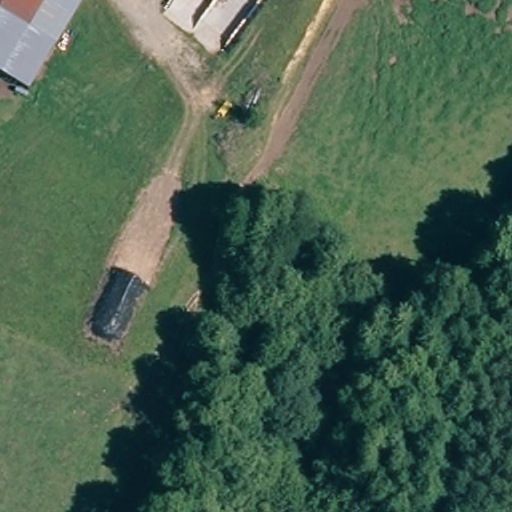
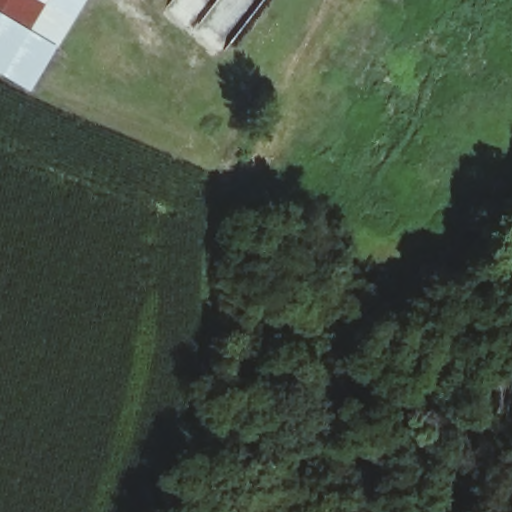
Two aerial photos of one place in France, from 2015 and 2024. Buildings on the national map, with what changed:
unchanged [(0,7),(0,0),(6,0),(1,8),(0,7)]
unchanged [(6,0),(80,0),(55,41),(1,8),(6,0)]
unchanged [(0,65),(0,7),(1,8),(55,41),(45,59),(30,83),(21,78),(0,65)]

